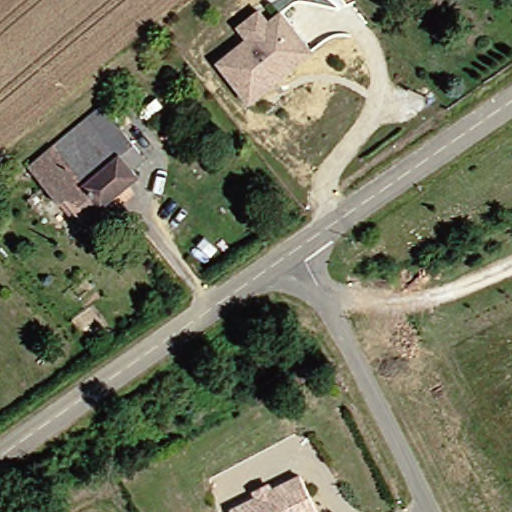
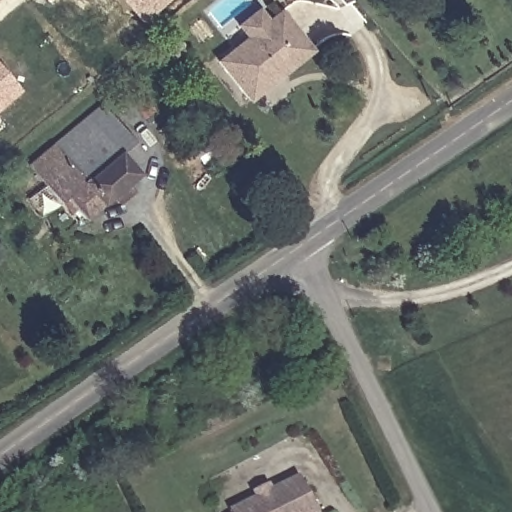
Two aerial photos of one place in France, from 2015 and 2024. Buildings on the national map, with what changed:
new [(123,0),(170,0),(142,24),(123,0)]
unchanged [(245,39),(235,27),(255,11),(264,24),(277,14),(308,52),(246,101),(215,63),(245,39)]
new [(21,87),(0,105),(0,62),(21,87)]
unchanged [(80,219),(61,199),(55,204),(23,166),(97,106),(140,157),(127,167),(133,175),(123,183),(129,190),(113,204),(107,196),(80,219)]
unchanged [(296,475),(316,512),(227,512),(296,475)]

